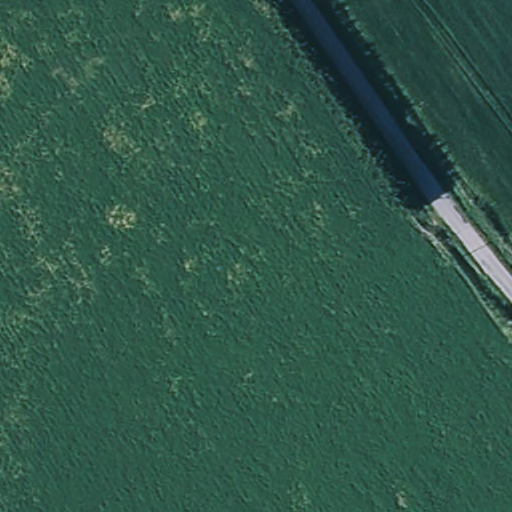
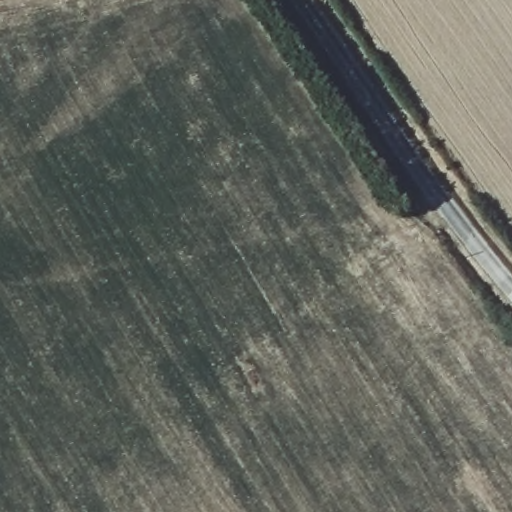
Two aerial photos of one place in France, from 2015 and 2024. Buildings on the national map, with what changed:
[]

